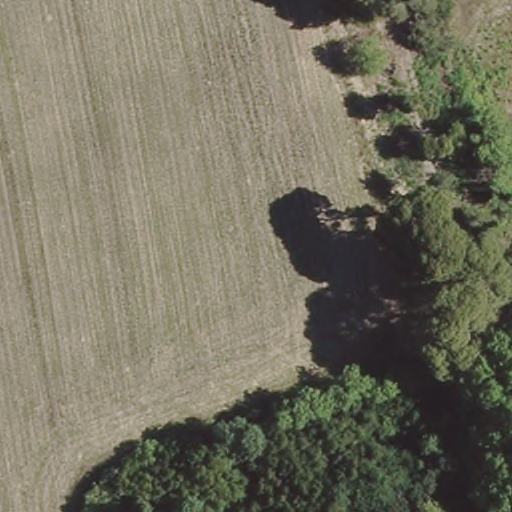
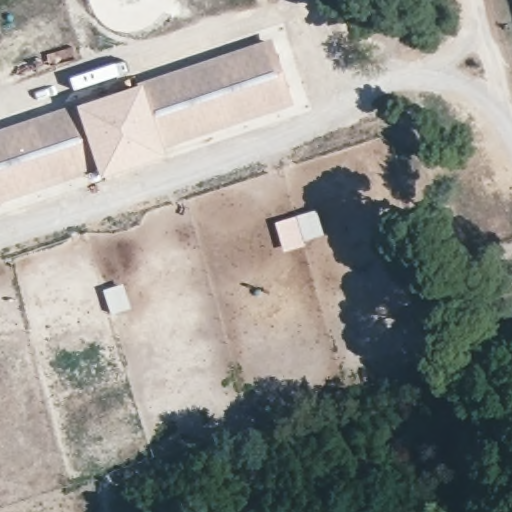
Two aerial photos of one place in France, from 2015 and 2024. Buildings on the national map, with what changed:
new [(80,105),(141,85),(140,82),(271,40),(292,105),(162,148),(165,155),(100,177),(97,168),(0,201),(0,130),(79,104),(80,105)]

